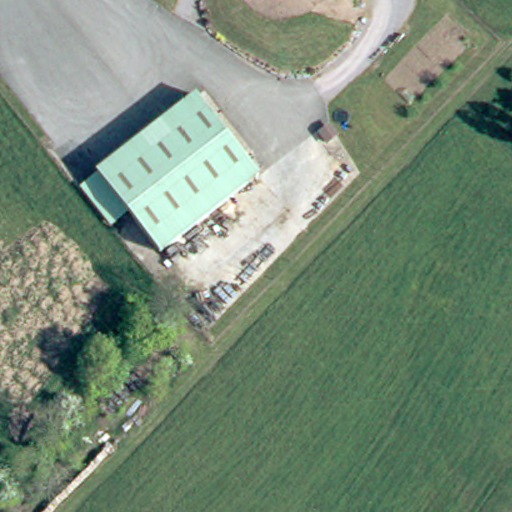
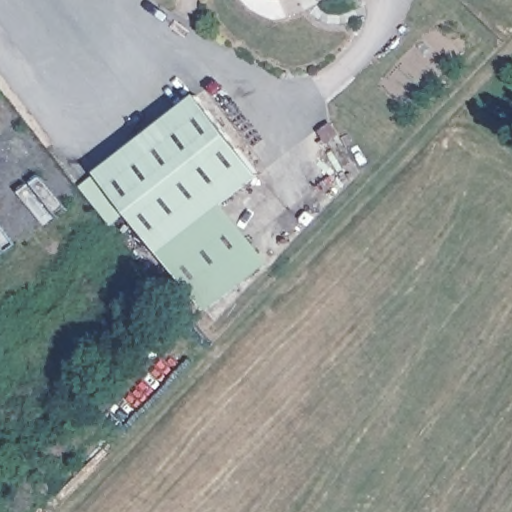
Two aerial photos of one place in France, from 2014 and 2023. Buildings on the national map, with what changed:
unchanged [(146,131),(195,90),(260,163),(212,205),(146,131)]
unchanged [(212,205),(162,247),(128,210),(96,175),(98,173),(146,131),(212,205)]
unchanged [(96,175),(128,210),(105,226),(75,183),(92,170),(96,175)]
new [(269,261),(207,309),(162,247),(212,205),(222,196),(269,261)]

